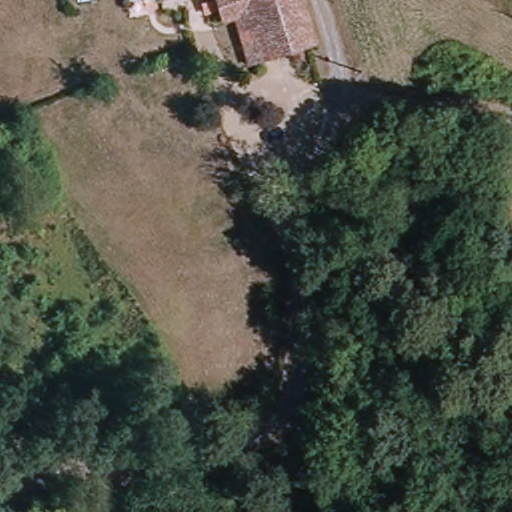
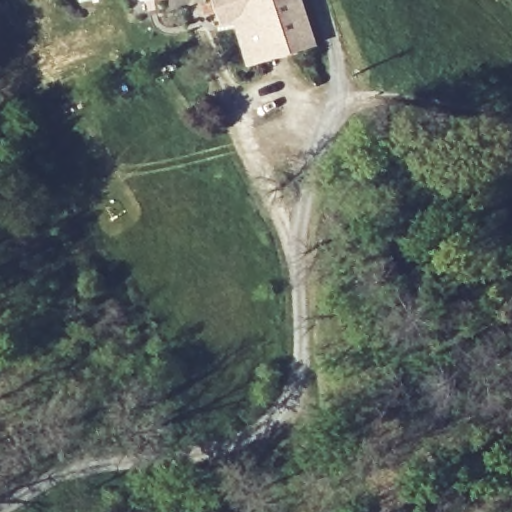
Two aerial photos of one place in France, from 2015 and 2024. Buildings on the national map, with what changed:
unchanged [(189,10),(166,12),(164,0),(190,0),(189,10)]
unchanged [(320,47),(253,68),(237,18),(222,21),(216,0),(303,0),(320,47)]

